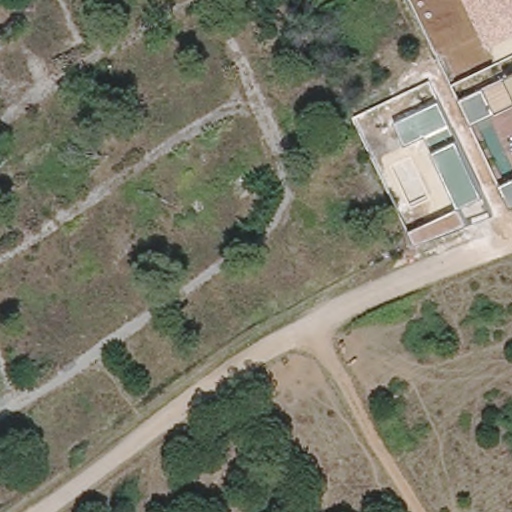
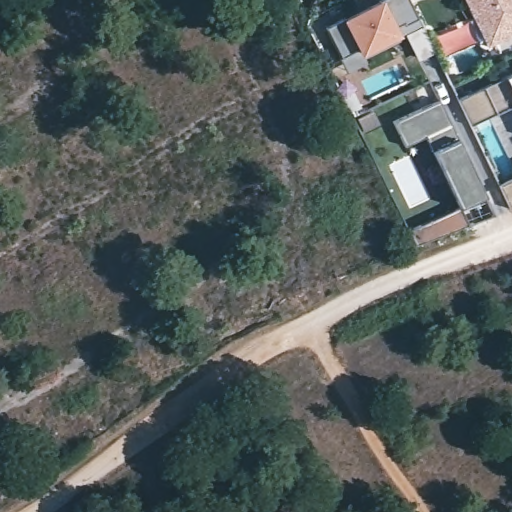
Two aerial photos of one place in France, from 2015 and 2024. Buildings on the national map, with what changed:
new [(345,18),(382,0),(410,0),(418,19),(405,25),(403,23),(393,28),(397,34),(360,51),(358,48),(340,56),(326,26),(345,17),(345,18)]
unchanged [(487,46),(464,0),(512,0),(512,36),(487,46)]
unchanged [(470,124),(460,100),(512,76),(512,106),(470,124)]
unchanged [(458,208),(425,136),(403,146),(394,123),(438,101),(482,197),(458,208)]
unchanged [(512,180),(512,208),(511,209),(500,186),(512,180)]
unchanged [(415,243),(410,232),(458,208),(466,225),(415,243)]

